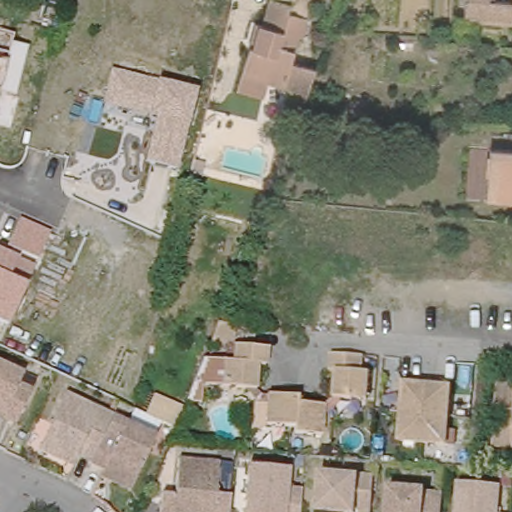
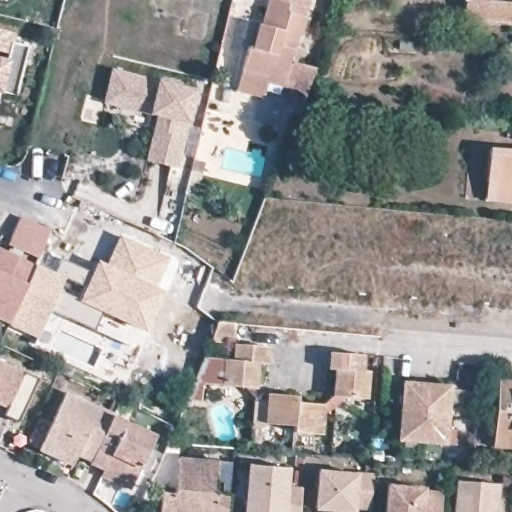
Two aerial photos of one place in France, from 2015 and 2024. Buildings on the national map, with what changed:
unchanged [(237,83),(239,77),(245,54),(250,29),(255,30),(259,30),(265,5),(266,4),(267,0),(307,0),(296,45),(293,44),(280,94),(263,90),(237,84),(237,83)]
unchanged [(329,5),(310,0),(330,0),(329,5)]
unchanged [(458,14),(459,0),(512,0),(512,19),(458,14)]
unchanged [(13,44),(28,47),(16,96),(0,92),(0,30),(15,33),(13,44)]
unchanged [(111,70),(198,91),(178,170),(145,162),(156,119),(102,105),(111,70)]
unchanged [(512,198),(483,195),(485,179),(485,178),(488,146),(512,149),(512,198)]
unchanged [(8,326),(0,322),(0,250),(6,252),(20,217),(51,230),(8,326)]
new [(54,272),(60,258),(92,273),(98,260),(107,264),(121,235),(170,257),(156,287),(163,291),(146,332),(102,313),(94,330),(50,311),(37,339),(8,326),(27,285),(36,265),(54,272)]
unchanged [(206,343),(214,323),(230,325),(228,345),(206,343)]
unchanged [(231,361),(232,346),(264,348),(263,365),(255,364),(253,389),(220,385),(200,383),(198,402),(184,400),(200,360),(223,361),(231,361)]
unchanged [(369,395),(335,393),(338,366),(333,365),(334,350),(365,351),(364,368),(370,368),(369,395)]
unchanged [(20,379),(34,385),(18,420),(18,421),(3,415),(4,413),(0,412),(0,364),(22,373),(20,379)]
unchanged [(494,445),(495,436),(496,436),(499,378),(512,379),(512,446),(494,445)]
unchanged [(401,437),(406,379),(452,382),(448,440),(401,437)]
unchanged [(316,431),(291,428),(291,423),(263,421),(266,390),(294,393),(293,399),(319,401),(316,431)]
unchanged [(67,464),(68,463),(40,451),(66,395),(113,416),(91,463),(79,456),(77,461),(74,467),(67,464)]
new [(158,395),(186,408),(178,428),(149,415),(158,395)]
unchanged [(102,478),(105,470),(95,466),(91,463),(113,416),(140,428),(156,435),(148,451),(134,483),(130,492),(102,478)]
unchanged [(177,491),(180,457),(219,460),(216,490),(231,491),(229,512),(213,512),(213,511),(213,510),(213,512),(160,512),(162,490),(177,491)]
unchanged [(285,465),(283,484),(298,485),(295,512),(240,512),(245,461),(285,465)]
unchanged [(316,467),(355,471),(355,470),(370,471),(367,505),(352,504),(352,509),(312,505),(316,467)]
unchanged [(421,486),(421,491),(438,492),(436,512),(380,512),(383,482),(421,486)]
unchanged [(495,485),(492,512),(452,512),(455,482),(495,485)]

